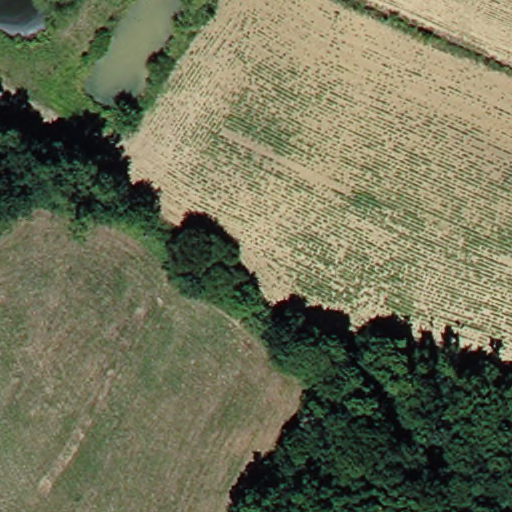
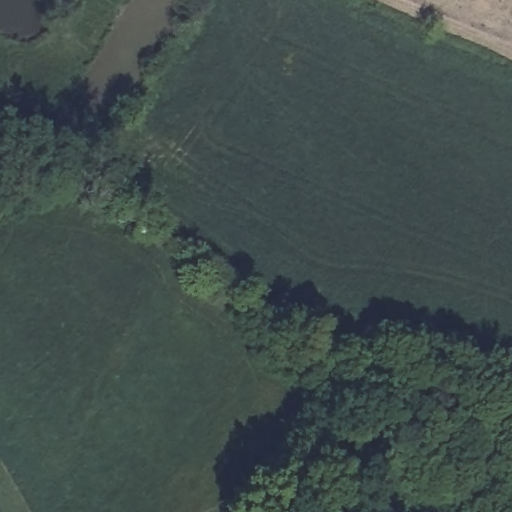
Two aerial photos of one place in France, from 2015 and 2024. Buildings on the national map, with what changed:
[]

